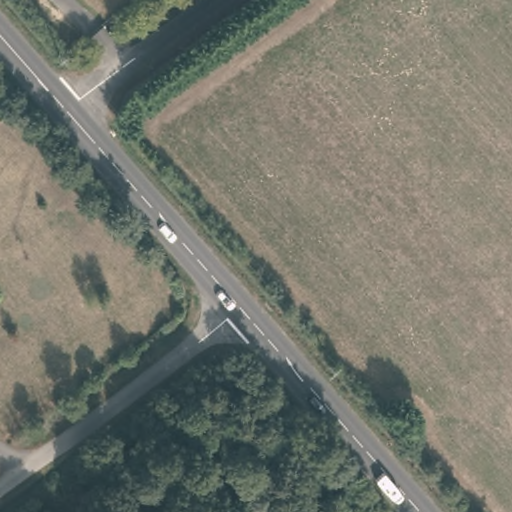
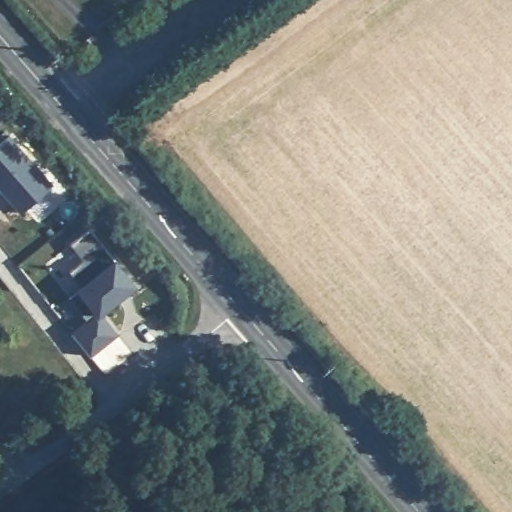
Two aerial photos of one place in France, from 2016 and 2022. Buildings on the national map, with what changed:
new [(12,135),(55,184),(23,213),(0,186),(0,145),(12,135)]
new [(102,314),(119,335),(92,356),(74,334),(89,321),(71,298),(84,287),(71,272),(85,260),(72,244),(91,229),(137,285),(130,291),(120,299),(102,314)]

